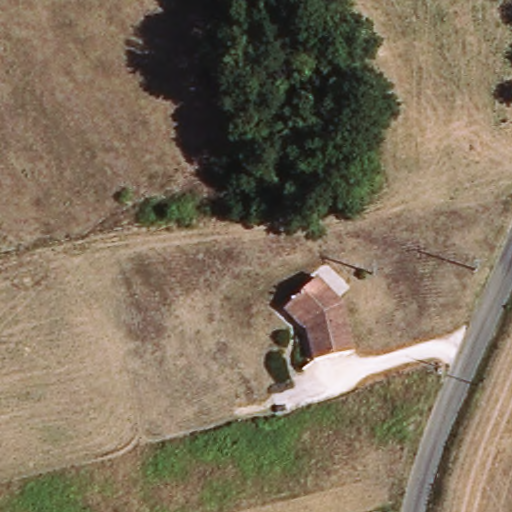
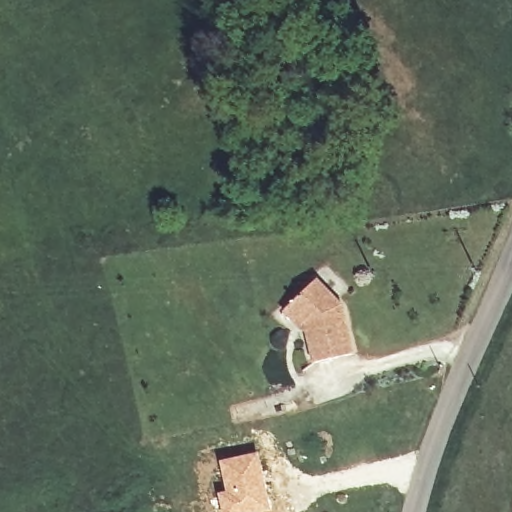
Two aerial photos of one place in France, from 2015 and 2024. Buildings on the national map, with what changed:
unchanged [(315,365),(309,337),(286,313),(290,310),(317,282),(342,308),(354,356),(315,365)]
new [(224,490),(219,460),(258,451),(270,510),(264,512),(220,512),(216,492),(224,490)]

